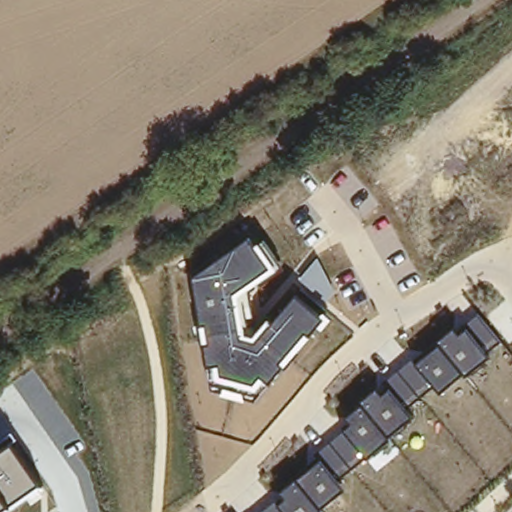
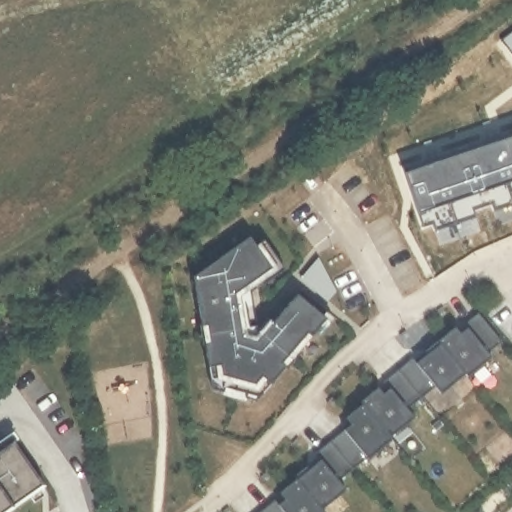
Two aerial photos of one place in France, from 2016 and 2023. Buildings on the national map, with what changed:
new [(512,210),(488,219),(485,207),(461,215),(465,228),(427,240),(423,228),(408,232),(388,162),(512,120),(512,210)]
unchanged [(257,395),(211,381),(195,276),(255,236),(278,267),(248,290),(257,338),(302,294),(331,320),(257,395)]
new [(317,261),(334,291),(327,300),(302,279),(317,261)]
unchanged [(491,359),(466,378),(462,374),(440,393),(432,384),(405,408),(412,417),(386,437),(390,440),(340,482),(345,490),(321,510),(323,512),(257,512),(277,493),(320,457),(316,452),(354,419),(348,413),(376,387),(381,392),(417,362),(440,343),(437,340),(454,328),(458,332),(479,314),(500,340),(485,353),(491,359)]
unchanged [(0,512),(0,440),(9,434),(45,484),(6,512),(0,512)]

